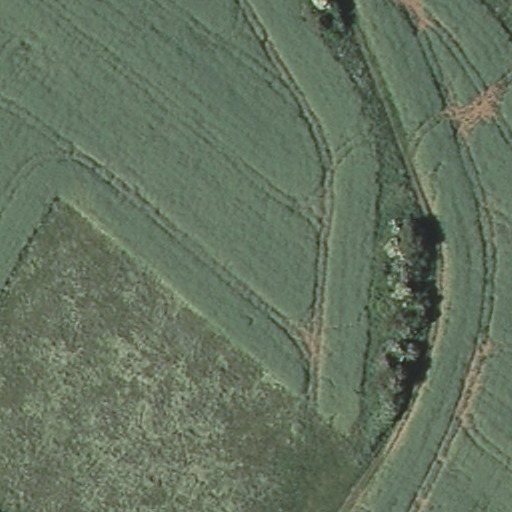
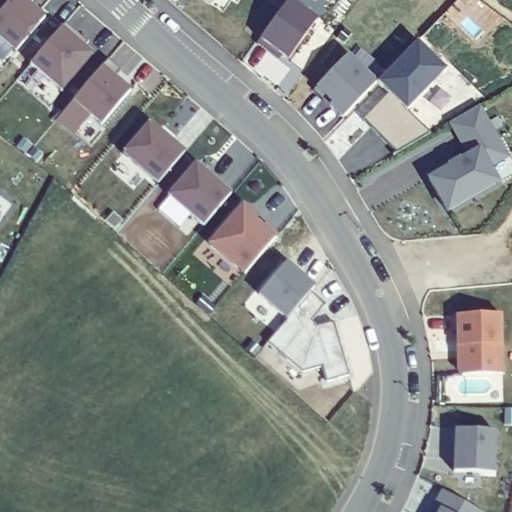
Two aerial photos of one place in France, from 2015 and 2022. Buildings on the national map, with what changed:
new [(45,19),(16,53),(0,39),(0,12),(10,0),(35,0),(30,5),(45,19)]
new [(319,15),(290,57),(262,37),(288,0),(297,0),(319,15)]
new [(88,43),(84,46),(93,55),(62,92),(30,63),(63,27),(66,23),(88,43)]
new [(449,66),(409,107),(379,78),(418,37),(449,66)]
new [(379,83),(344,117),(329,105),(332,102),(317,87),(349,52),(379,83)]
new [(72,101),(107,60),(120,71),(114,79),(128,91),(100,125),(72,101)]
new [(509,157),(489,164),(499,184),(447,212),(427,177),(467,155),(450,122),(480,106),(509,157)]
new [(123,155),(149,125),(184,154),(157,185),(123,155)]
new [(167,197),(195,165),(229,195),(203,226),(167,197)]
new [(209,244),(241,206),(277,236),(244,274),(209,244)]
new [(287,319),(260,295),(287,262),(315,287),(310,291),(287,319)]
new [(310,291),(325,305),(311,321),(318,328),(334,325),(348,377),(327,383),(322,367),(303,373),(268,342),(310,291)]
new [(461,375),(457,372),(456,316),(500,315),(501,375),(461,375)]
new [(452,472),(455,430),(495,431),(493,473),(452,472)]
new [(479,512),(432,512),(443,492),(479,512)]

